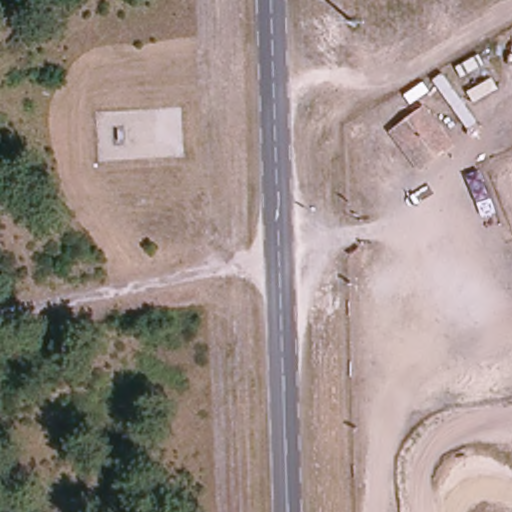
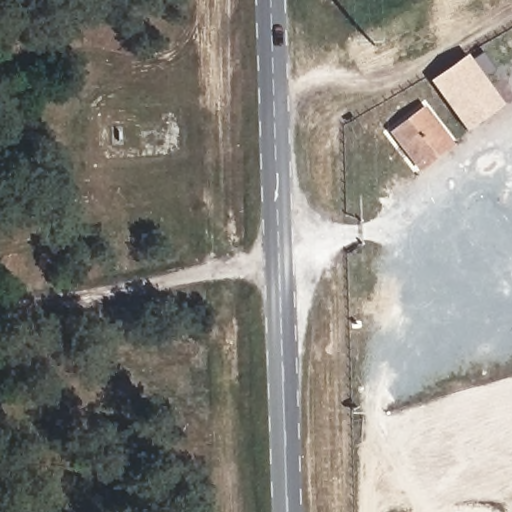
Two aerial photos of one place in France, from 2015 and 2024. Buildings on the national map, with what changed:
new [(467,54),(501,102),(465,129),(431,80),(467,54)]
unchanged [(419,173),(388,132),(423,104),(457,145),(419,173)]

